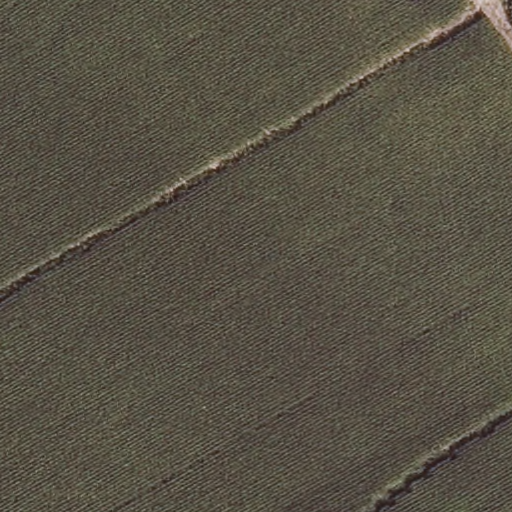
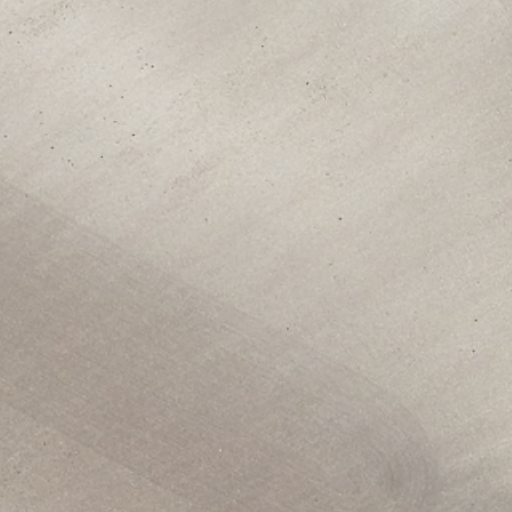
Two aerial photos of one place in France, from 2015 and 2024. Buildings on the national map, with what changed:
[]

